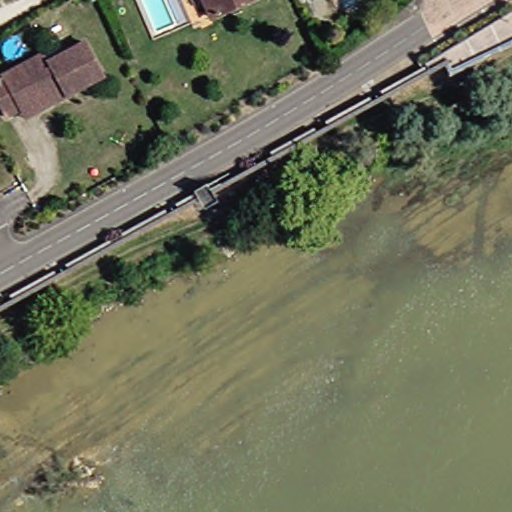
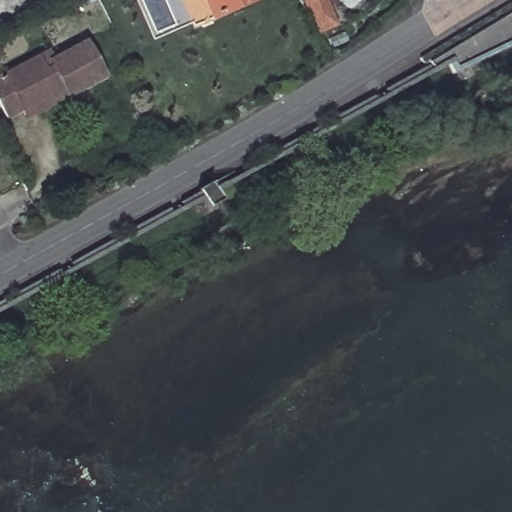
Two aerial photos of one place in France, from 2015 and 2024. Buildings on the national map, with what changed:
unchanged [(203,0),(256,0),(211,19),(203,0)]
unchanged [(19,110),(5,119),(0,109),(0,77),(37,56),(47,50),(52,59),(83,43),(102,78),(64,99),(25,120),(19,110)]

